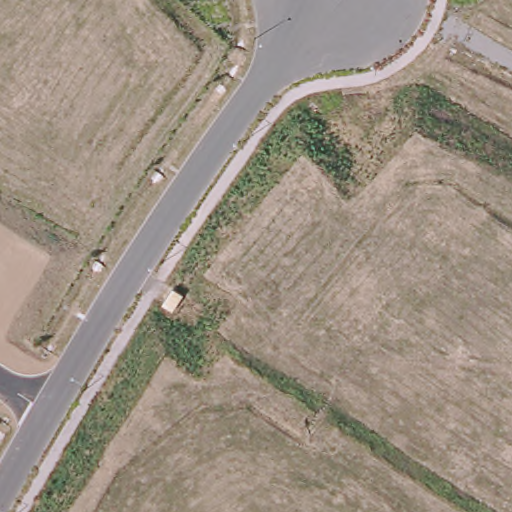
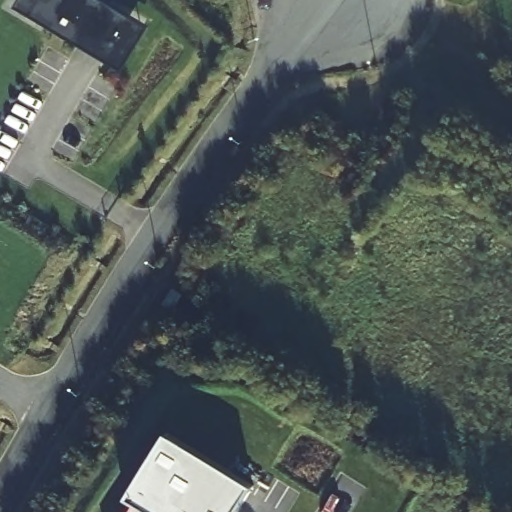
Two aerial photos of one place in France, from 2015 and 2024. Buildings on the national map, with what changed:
new [(124,70),(16,5),(19,0),(108,0),(153,25),(124,70)]
unchanged [(173,288),(183,294),(172,311),(163,305),(173,288)]
new [(246,494),(234,512),(128,512),(128,510),(120,505),(162,435),(246,494)]

